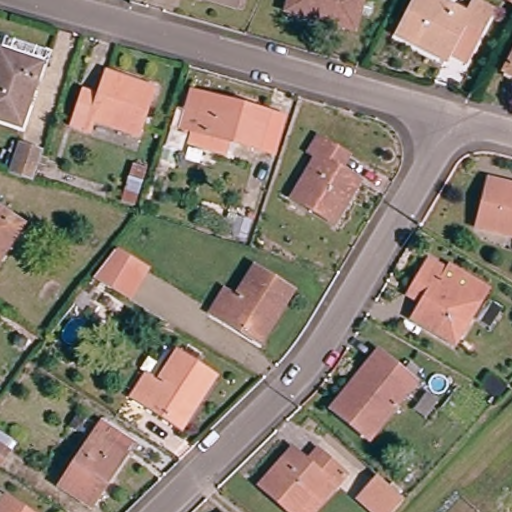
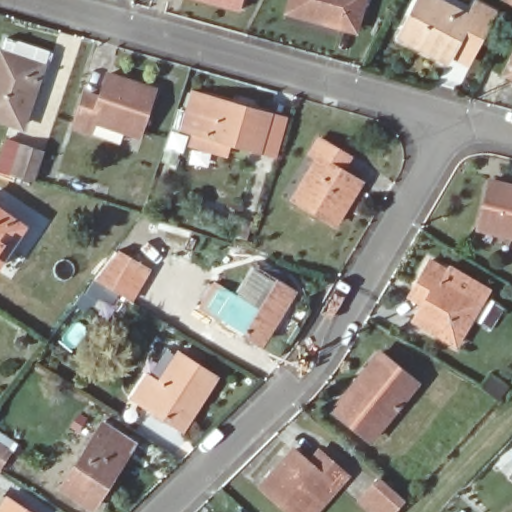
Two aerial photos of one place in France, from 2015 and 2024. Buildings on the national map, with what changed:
unchanged [(207,0),(240,0),(238,8),(207,0)]
unchanged [(290,0),(364,0),(357,29),(288,12),(290,0)]
unchanged [(415,0),(441,0),(469,15),(476,2),(494,10),(478,42),(460,33),(447,61),(398,37),(415,0)]
unchanged [(504,0),(512,0),(512,4),(504,0)]
unchanged [(19,129),(0,122),(0,52),(41,66),(19,129)]
unchanged [(512,58),(512,76),(505,72),(512,58)]
unchanged [(86,91),(101,97),(111,69),(158,86),(141,133),(99,118),(95,129),(76,123),(86,91)]
unchanged [(194,93),(273,114),(262,152),(235,145),(231,159),(191,147),(195,134),(184,131),(194,93)]
unchanged [(316,153),(309,149),(318,134),(346,151),(337,163),(360,177),(334,219),(292,193),(316,153)]
unchanged [(33,183),(10,177),(20,146),(43,154),(33,183)]
unchanged [(489,176),(512,182),(512,232),(477,223),(489,176)]
unchanged [(0,258),(0,211),(23,228),(0,258)]
unchanged [(123,299),(91,280),(115,249),(144,270),(123,299)]
unchanged [(429,260),(443,269),(439,277),(480,302),(455,345),(411,320),(425,296),(412,288),(429,260)]
unchanged [(225,292),(236,299),(254,269),(292,291),(259,344),(212,315),(225,292)]
unchanged [(380,351),(417,383),(369,440),(332,408),(380,351)]
unchanged [(148,376),(160,384),(178,355),(214,379),(182,429),(134,399),(148,376)]
unchanged [(107,415),(139,435),(91,508),(60,487),(107,415)]
unchanged [(0,464),(0,440),(11,447),(0,464)]
unchanged [(309,463),(320,452),(347,476),(336,488),(329,481),(302,512),(289,512),(259,486),(293,449),(309,463)]
unchanged [(393,512),(380,512),(361,496),(373,483),(374,484),(400,505),(399,505),(393,512)]
unchanged [(32,512),(1,512),(11,498),(32,512)]

